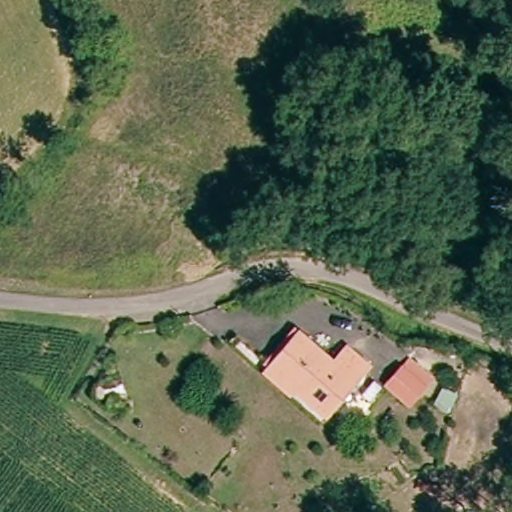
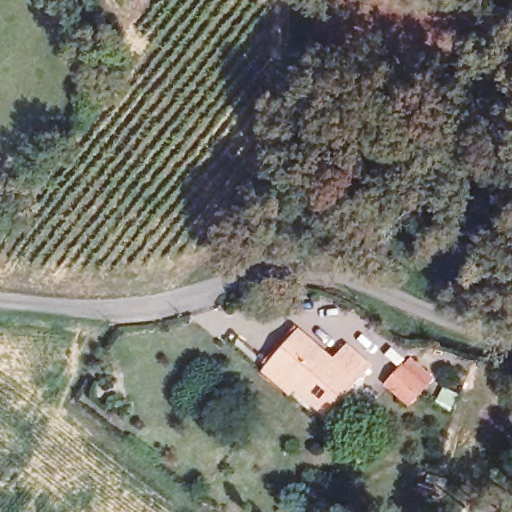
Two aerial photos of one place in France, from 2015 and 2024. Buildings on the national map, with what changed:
unchanged [(262,372),(295,326),(329,358),(346,342),(370,369),(320,419),(262,372)]
unchanged [(378,384),(408,353),(432,381),(409,408),(378,384)]

